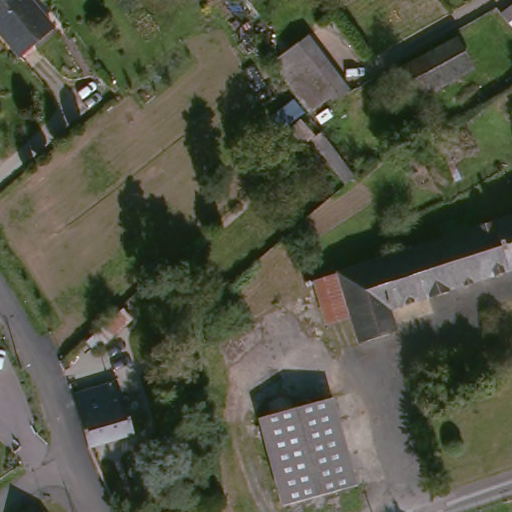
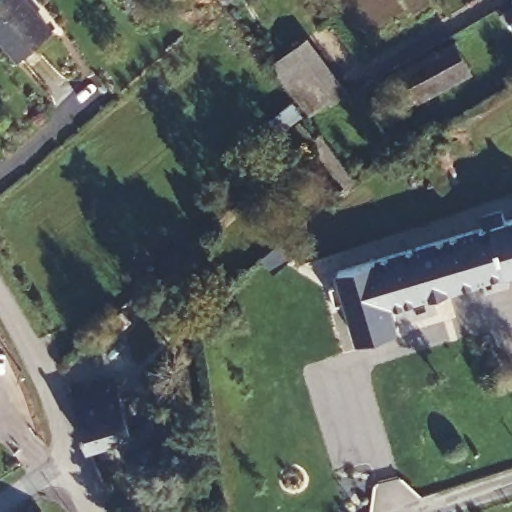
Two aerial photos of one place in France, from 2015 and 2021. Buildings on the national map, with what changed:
unchanged [(0,34),(0,0),(28,0),(52,29),(20,57),(0,34)]
unchanged [(512,10),(512,32),(500,19),(512,10)]
unchanged [(404,75),(418,68),(471,39),(485,66),(432,95),(419,103),(404,75)]
unchanged [(354,90),(341,98),(338,94),(313,114),(277,71),(315,41),(354,90)]
unchanged [(355,177),(345,185),(311,139),(321,131),(355,177)]
unchanged [(512,221),(512,274),(442,296),(442,297),(423,304),(422,302),(385,314),(391,336),(353,348),(346,325),(333,280),(486,229),(512,221)]
unchanged [(86,342),(122,309),(131,319),(95,352),(86,342)]
unchanged [(133,434),(89,448),(73,396),(118,383),(133,434)]
demolished [(356,491),(283,511),(258,424),(331,404),(356,491)]

